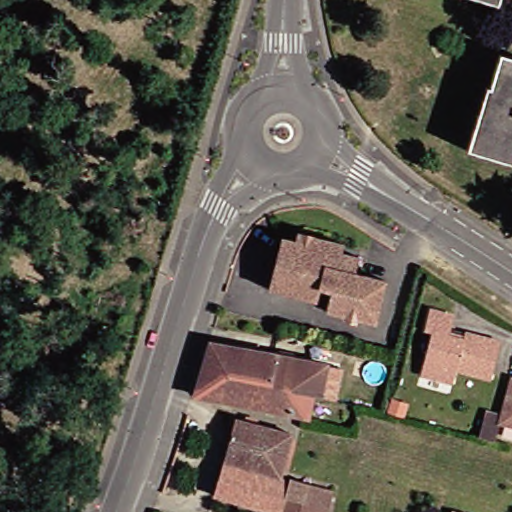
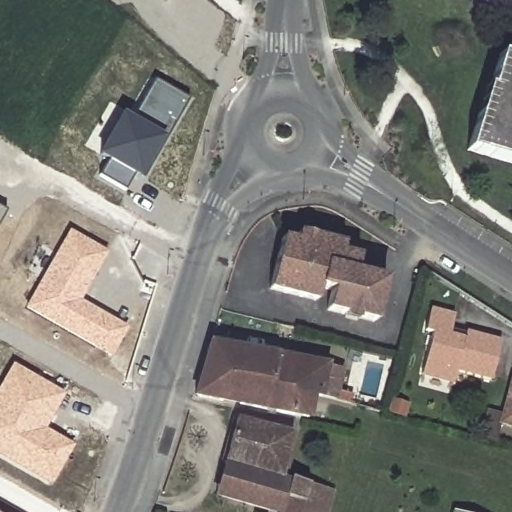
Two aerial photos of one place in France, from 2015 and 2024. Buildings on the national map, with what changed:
unchanged [(485,0),(503,0),(502,5),(485,0)]
unchanged [(492,87),(495,87),(506,56),(512,57),(512,162),(473,150),(492,87)]
new [(163,140),(139,182),(131,176),(123,192),(98,177),(106,162),(95,155),(120,114),(131,121),(153,82),(186,102),(163,140)]
new [(4,212),(0,220),(0,209),(4,212)]
new [(79,302),(126,330),(109,361),(22,309),(68,231),(106,256),(79,302)]
unchanged [(286,236),(297,237),(298,231),(346,243),(345,250),(358,254),(354,271),(387,280),(376,321),(330,307),(334,294),(322,290),(318,301),(273,287),(286,236)]
unchanged [(430,331),(436,310),(459,316),(454,331),(468,335),(469,332),(506,342),(496,378),(464,368),(459,382),(427,373),(440,335),(430,331)]
unchanged [(261,385),(314,395),(308,417),(194,397),(209,347),(268,357),(261,385)]
unchanged [(335,399),(316,396),(314,395),(261,385),(268,357),(324,365),(343,367),(335,399)]
new [(44,430),(72,447),(48,488),(0,460),(0,384),(11,365),(64,396),(44,430)]
unchanged [(510,379),(512,379),(512,426),(502,423),(511,390),(508,388),(510,379)]
unchanged [(240,416),(298,432),(284,473),(227,458),(240,416)]
unchanged [(273,508),(216,494),(227,458),(284,473),(273,508)]
unchanged [(325,497),(335,501),(331,512),(283,512),(273,508),(284,473),(328,486),(325,497)]
unchanged [(454,511),(457,512),(454,512),(454,511)]

